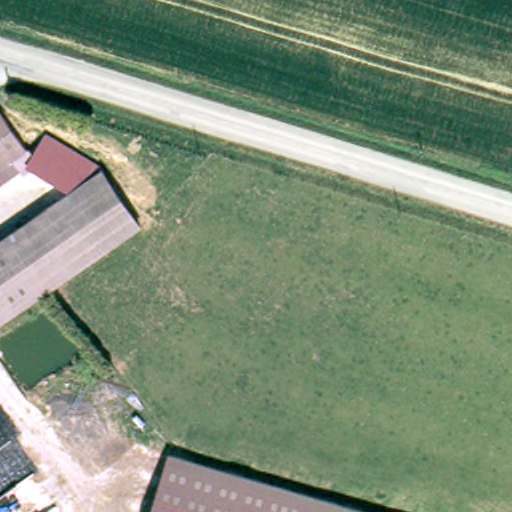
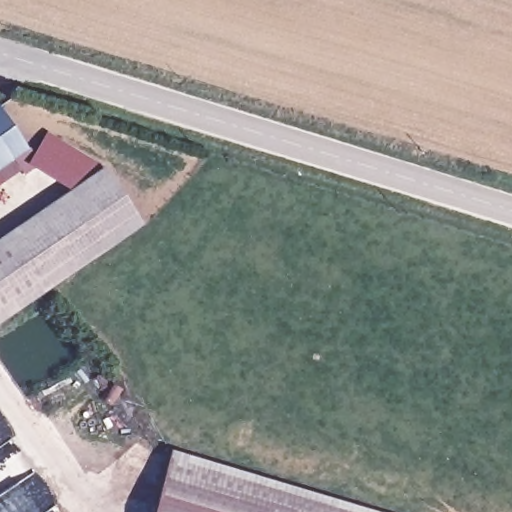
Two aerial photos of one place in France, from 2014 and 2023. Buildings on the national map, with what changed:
unchanged [(0,159),(0,105),(25,141),(0,159)]
unchanged [(35,149),(45,130),(104,165),(99,172),(71,192),(31,168),(23,173),(21,170),(0,183),(0,159),(25,141),(35,149)]
unchanged [(0,323),(0,241),(99,172),(137,227),(0,323)]
unchanged [(169,455),(361,512),(152,512),(169,455)]

